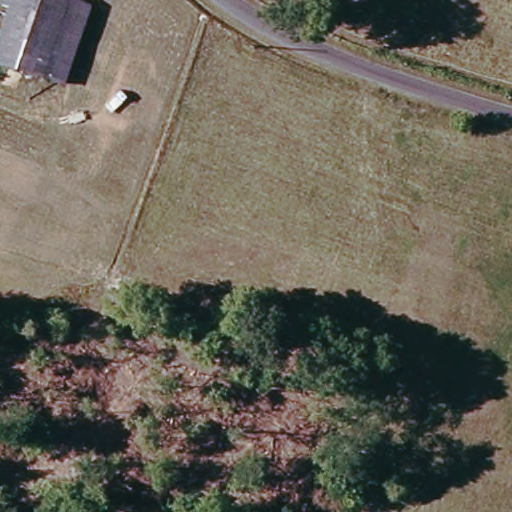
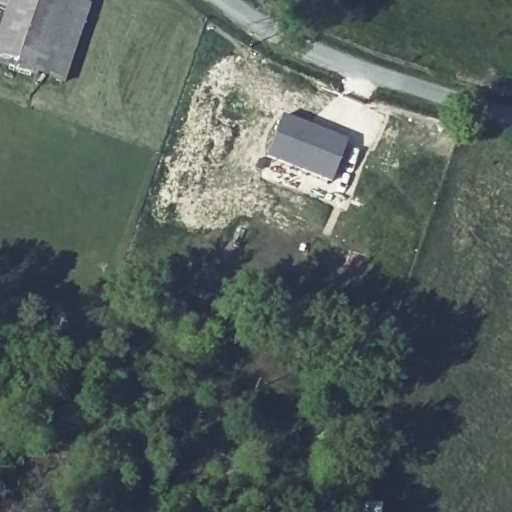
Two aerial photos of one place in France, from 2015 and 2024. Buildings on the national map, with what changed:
unchanged [(0,26),(9,0),(81,0),(86,2),(83,15),(60,82),(0,61),(0,26)]
new [(283,114),(347,140),(332,181),(265,157),(283,114)]

